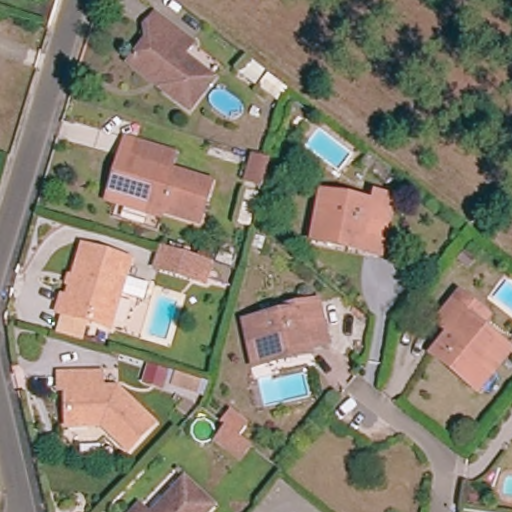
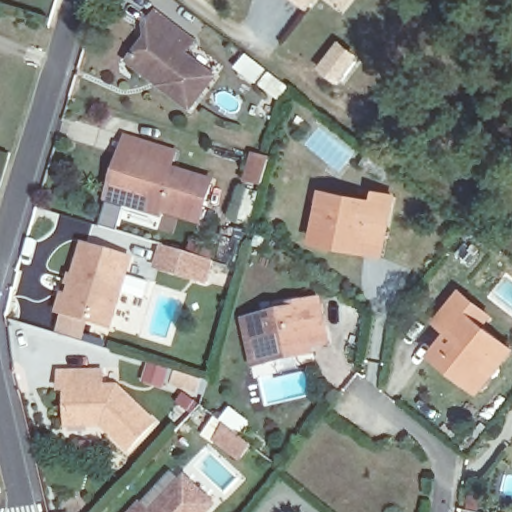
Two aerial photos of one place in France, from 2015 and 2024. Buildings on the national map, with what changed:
new [(295,0),(316,0),(307,10),(295,0)]
new [(334,0),(350,0),(344,7),(334,0)]
unchanged [(126,57),(145,31),(140,26),(151,12),(177,35),(188,43),(180,54),(210,77),(184,111),(154,87),(122,62),(126,57)]
new [(318,68),(340,41),(358,56),(338,83),(318,68)]
unchanged [(247,51),(261,62),(251,76),(231,61),(241,47),(247,51)]
unchanged [(175,171),(217,183),(205,224),(115,196),(127,156),(132,140),(142,144),(180,155),(175,171)]
unchanged [(393,167),(381,182),(357,165),(369,150),(393,167)]
unchanged [(268,163),(262,190),(244,185),(251,158),(268,163)]
unchanged [(331,251),(311,247),(321,194),(373,203),(375,194),(393,196),(385,241),(381,259),(331,251)]
unchanged [(57,333),(62,315),(57,313),(62,297),(67,299),(84,247),(131,261),(125,277),(149,285),(144,302),(120,295),(110,329),(89,322),(83,341),(57,333)]
unchanged [(206,294),(157,279),(164,258),(212,273),(206,294)]
unchanged [(435,347),(447,332),(433,322),(456,292),(471,303),(485,315),(477,325),(507,350),(475,390),(457,376),(429,355),(435,347)]
unchanged [(275,363),(257,368),(246,325),(271,317),(269,309),(301,302),(315,297),(326,338),(311,342),(313,353),(275,363)]
unchanged [(112,367),(112,382),(127,381),(165,416),(140,445),(109,417),(102,417),(101,423),(77,424),(77,386),(69,386),(67,367),(112,367)]
unchanged [(219,429),(237,443),(228,456),(226,453),(210,441),(219,429)]
unchanged [(182,478),(212,502),(203,512),(152,512),(182,478)]
unchanged [(138,507),(144,512),(133,512),(138,507)]

